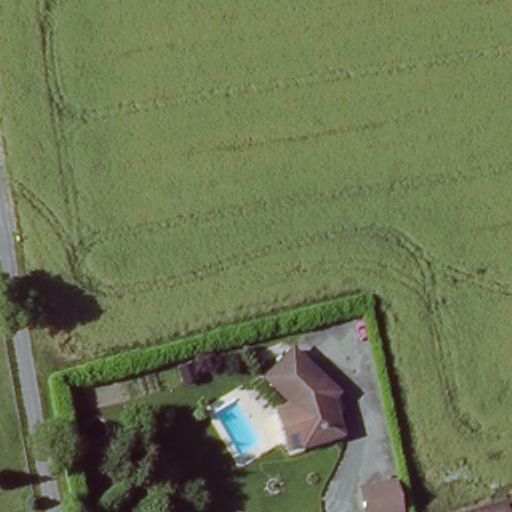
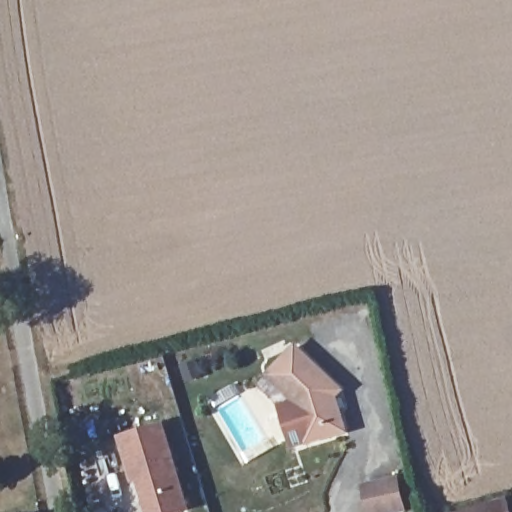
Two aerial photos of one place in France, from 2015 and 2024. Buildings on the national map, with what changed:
unchanged [(341,389),(335,397),(348,428),(315,439),(310,428),(305,429),(295,402),(268,378),(295,347),(341,389)]
new [(201,350),(210,374),(184,383),(177,360),(201,350)]
new [(190,510),(185,512),(143,512),(133,485),(131,485),(115,436),(163,417),(190,510)]
unchanged [(386,512),(368,512),(362,483),(395,475),(403,507),(386,512)]
unchanged [(510,512),(445,512),(505,494),(510,512)]

